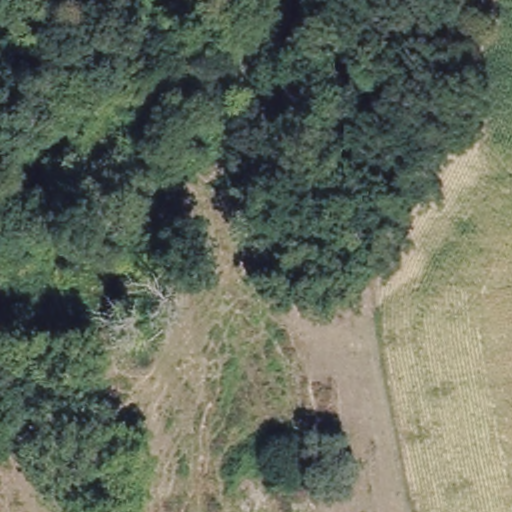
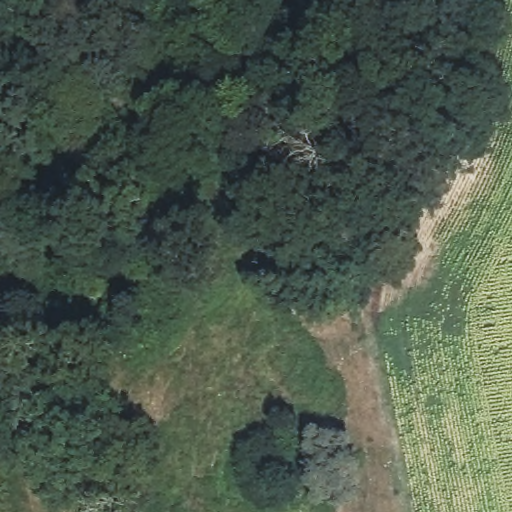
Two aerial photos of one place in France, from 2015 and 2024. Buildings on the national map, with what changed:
[]

